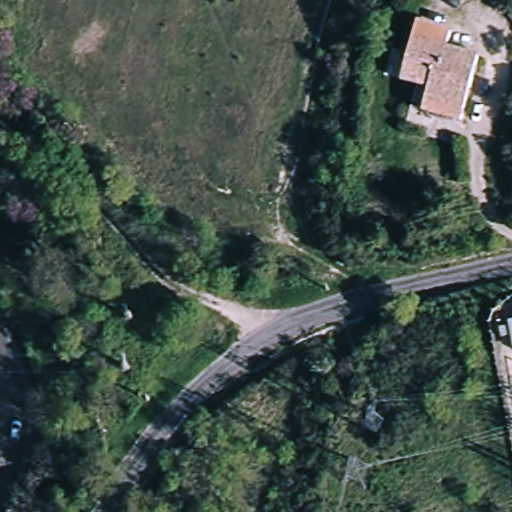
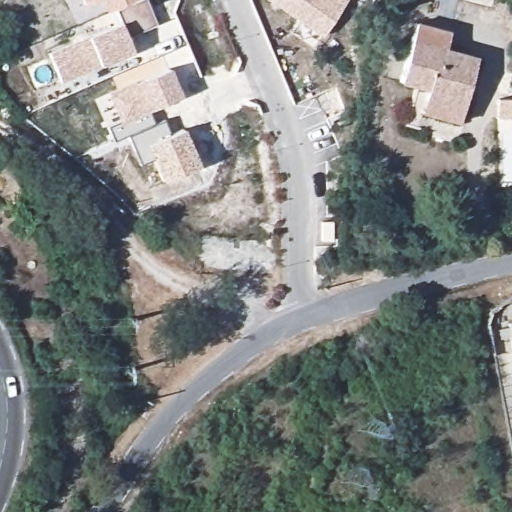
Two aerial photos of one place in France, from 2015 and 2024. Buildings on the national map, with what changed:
new [(126,38),(133,51),(100,64),(58,80),(48,51),(87,35),(119,21),(114,9),(106,13),(99,0),(147,0),(157,25),(126,38)]
new [(92,0),(82,4),(80,0),(92,0)]
new [(323,36),(270,0),(348,0),(345,5),(323,36)]
unchanged [(412,26),(444,30),(443,48),(474,61),(455,121),(417,114),(422,94),(396,85),(412,26)]
new [(181,95),(146,109),(153,123),(162,118),(170,134),(183,129),(198,163),(161,179),(151,158),(139,162),(126,134),(113,140),(105,125),(117,120),(105,91),(133,80),(168,67),(181,95)]

